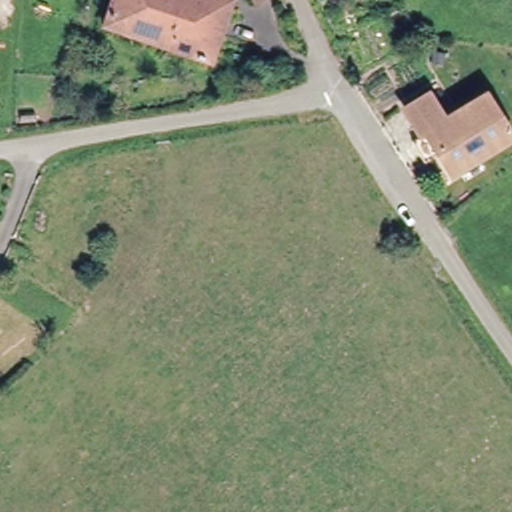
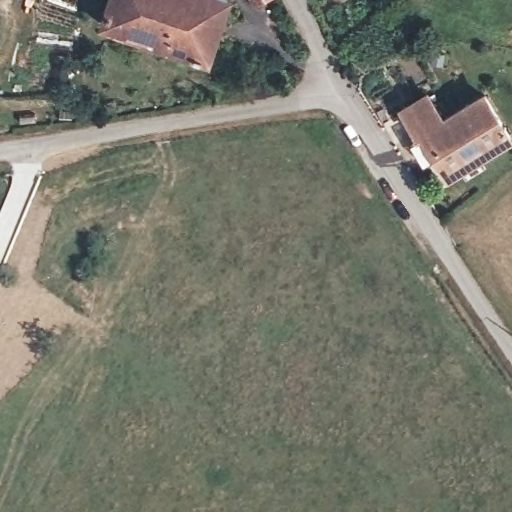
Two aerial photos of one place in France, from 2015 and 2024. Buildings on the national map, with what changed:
unchanged [(118,0),(236,0),(219,62),(109,30),(113,15),(118,0)]
unchanged [(247,0),(259,0),(250,5),(247,0)]
unchanged [(488,96),(512,134),(512,136),(448,174),(425,135),(417,140),(403,114),(429,97),(446,124),(488,96)]

